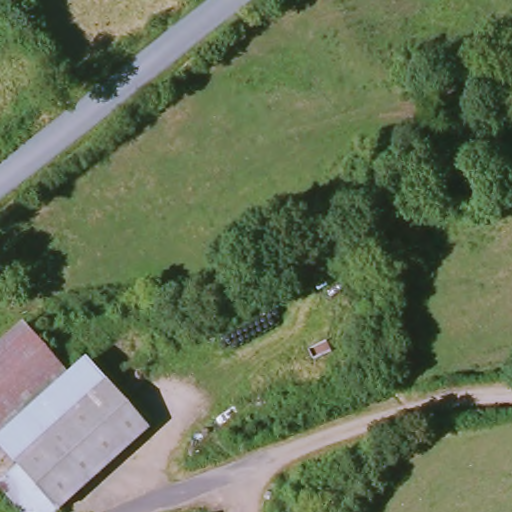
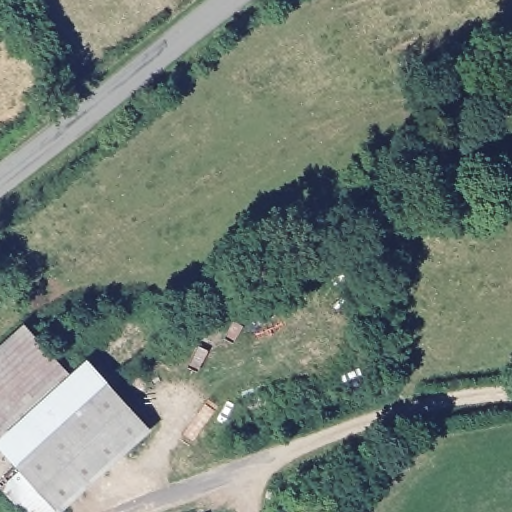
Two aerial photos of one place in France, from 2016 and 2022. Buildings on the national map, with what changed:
unchanged [(71,367),(0,432),(0,346),(28,320),(71,367)]
unchanged [(2,438),(91,357),(111,379),(22,460),(2,438)]
unchanged [(58,512),(34,512),(2,478),(22,460),(111,379),(153,425),(58,512)]

